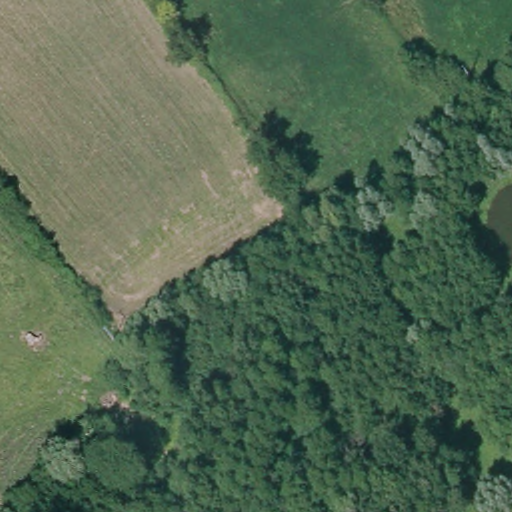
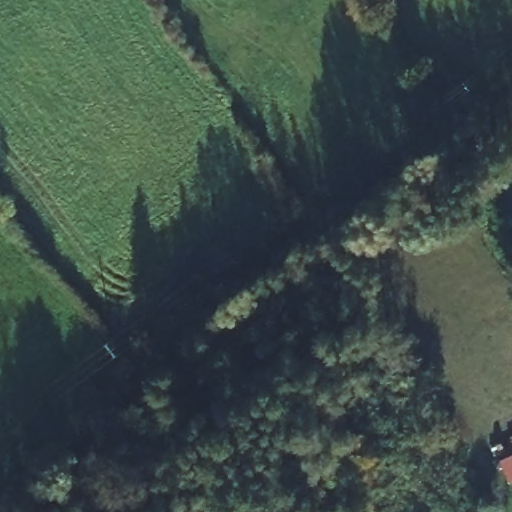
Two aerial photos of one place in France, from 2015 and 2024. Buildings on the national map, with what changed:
new [(512,454),(512,481),(510,482),(500,459),(512,454)]

